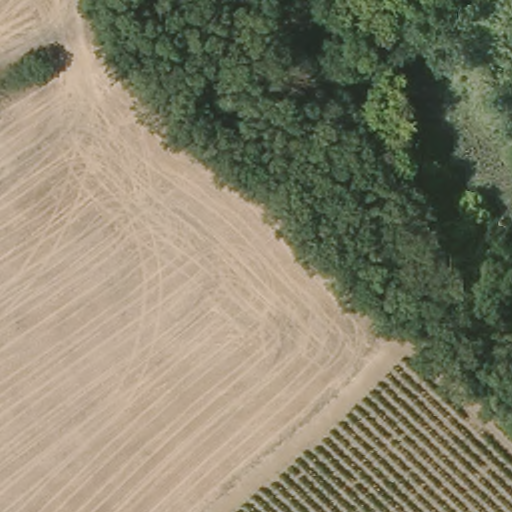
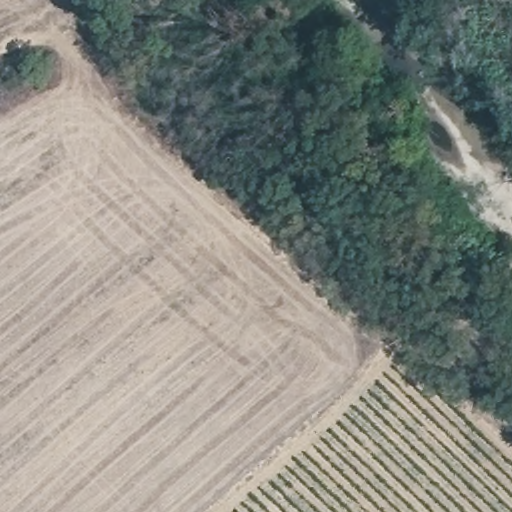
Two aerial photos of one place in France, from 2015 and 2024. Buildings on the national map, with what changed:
[]

